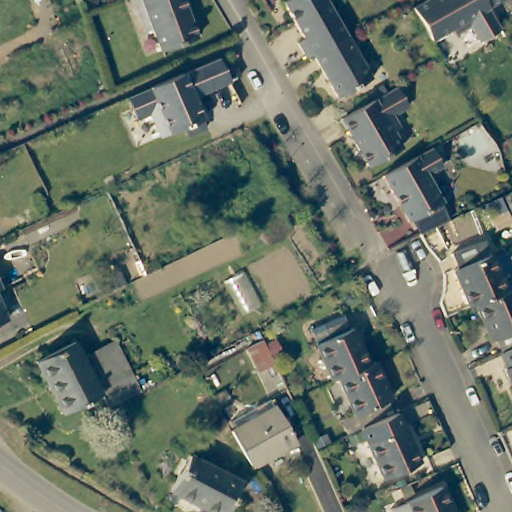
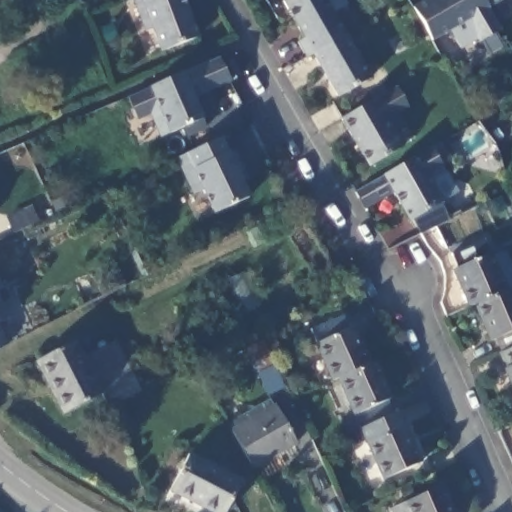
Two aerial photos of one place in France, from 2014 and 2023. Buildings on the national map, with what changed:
unchanged [(158,51),(151,29),(144,31),(134,0),(181,0),(196,40),(158,53),(158,51)]
unchanged [(326,0),(347,36),(313,56),(307,59),(298,44),(304,40),(283,4),(289,0),(326,0)]
unchanged [(465,27),(449,36),(446,32),(426,42),(407,10),(425,0),(477,0),(483,10),(495,31),(473,44),(465,27)]
unchanged [(477,0),(501,0),(483,10),(477,0)]
unchanged [(347,36),(372,79),(338,99),(313,56),(347,36)]
unchanged [(150,114),(136,120),(127,98),(152,86),(219,56),(230,84),(197,101),(208,129),(190,138),(186,126),(161,137),(150,114)]
demolished [(242,128),(240,129),(224,100),(237,94),(253,124),(242,128)]
unchanged [(405,111),(391,119),(399,129),(389,134),(399,153),(368,172),(339,126),(395,94),(405,111)]
new [(228,151),(235,149),(247,178),(241,182),(248,197),(211,213),(201,192),(192,195),(175,159),(222,138),(228,151)]
unchanged [(412,223),(409,224),(381,179),(431,150),(443,169),(428,178),(444,204),(441,206),(450,221),(420,236),(412,223)]
unchanged [(264,243),(256,228),(285,215),(291,230),(264,243)]
unchanged [(480,304),(475,307),(459,271),(462,269),(456,255),(487,240),(493,255),(496,255),(511,291),(480,304)]
unchanged [(501,340),(496,341),(480,304),(511,291),(512,290),(512,351),(507,354),(501,340)]
unchanged [(0,320),(0,311),(3,319),(0,320)]
unchanged [(316,330),(347,316),(354,331),(358,328),(375,365),(344,379),(339,381),(316,330)]
unchanged [(103,390),(63,410),(36,358),(76,338),(85,355),(99,385),(103,390)]
unchanged [(85,355),(116,340),(131,370),(99,385),(85,355)]
unchanged [(275,365),(260,374),(247,350),(263,343),(275,365)]
unchanged [(512,351),(512,364),(507,354),(512,351)]
unchanged [(368,429),(362,416),(360,415),(344,379),(375,365),(380,363),(396,399),(392,401),(398,415),(368,429)]
unchanged [(508,370),(512,367),(512,377),(508,370)]
unchanged [(231,432),(276,407),(297,444),(252,470),(231,432)]
unchanged [(404,430),(409,428),(426,464),(389,480),(374,445),(373,441),(368,429),(398,415),(404,430)]
unchanged [(224,512),(209,512),(168,491),(188,456),(239,483),(224,512)]
unchanged [(405,494),(442,478),(458,512),(413,512),(405,494)]

